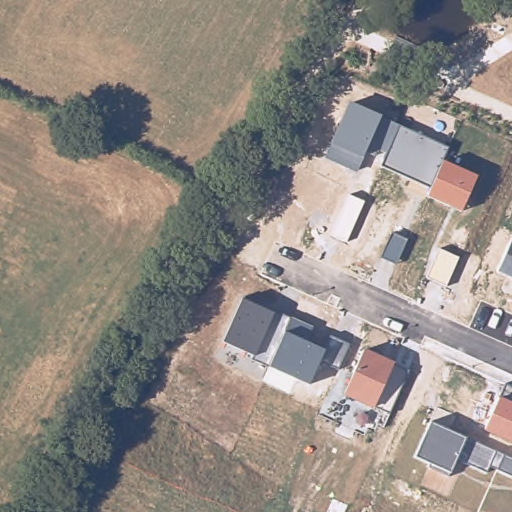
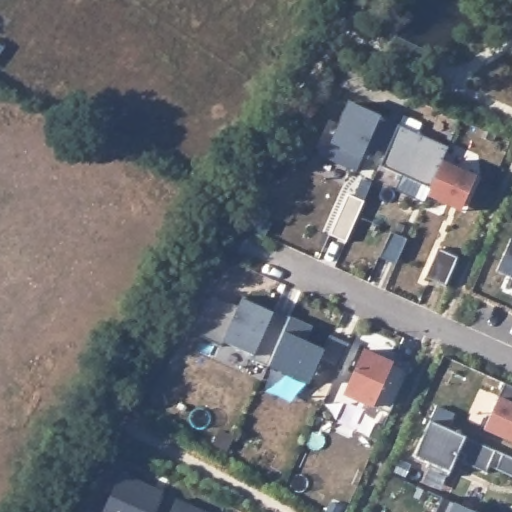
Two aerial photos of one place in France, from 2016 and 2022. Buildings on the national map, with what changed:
unchanged [(426,196),(429,190),(381,167),(386,154),(377,151),(374,157),(363,153),(362,157),(355,171),(324,156),(330,144),(348,101),(379,116),(448,149),(444,161),(476,176),(460,209),(426,196)]
unchanged [(331,234),(348,194),(352,197),(361,178),(371,182),(364,202),(346,241),(331,234)]
unchanged [(511,237),(512,237),(512,278),(495,271),(511,237)]
unchanged [(320,362),(309,385),(268,368),(253,358),(221,344),(241,298),(273,313),(348,344),(338,369),(320,362)]
unchanged [(363,349),(393,363),(408,371),(388,412),(374,409),(344,396),(363,349)]
unchanged [(499,398),(512,402),(512,442),(485,430),(499,398)]
unchanged [(487,472),(457,460),(452,472),(415,457),(430,422),(465,438),(495,451),(512,458),(512,475),(489,467),(487,472)]
new [(104,512),(121,475),(163,493),(154,512),(104,512)]
unchanged [(475,512),(435,512),(441,497),(475,512)]
unchanged [(201,512),(168,512),(173,501),(201,512)]

